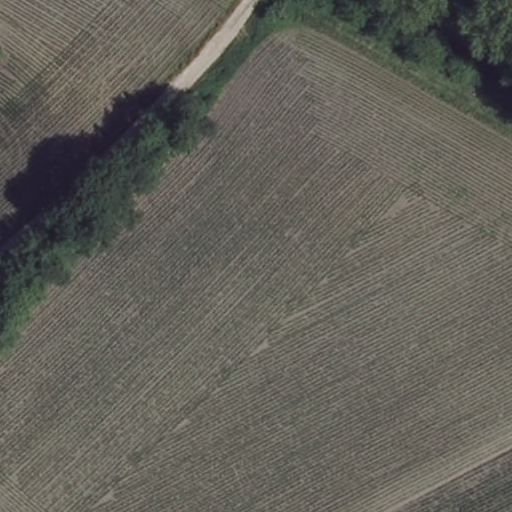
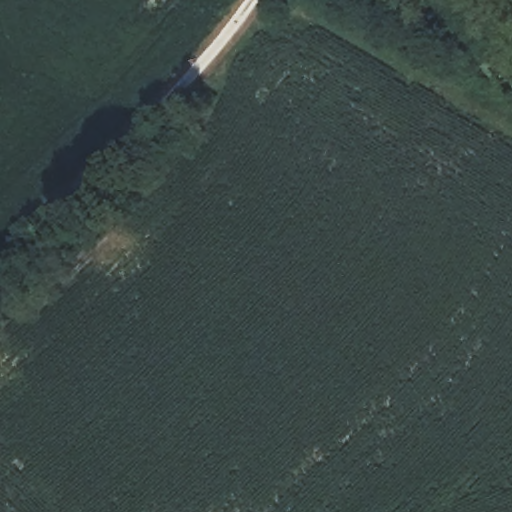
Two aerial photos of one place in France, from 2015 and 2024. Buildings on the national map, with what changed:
[]

